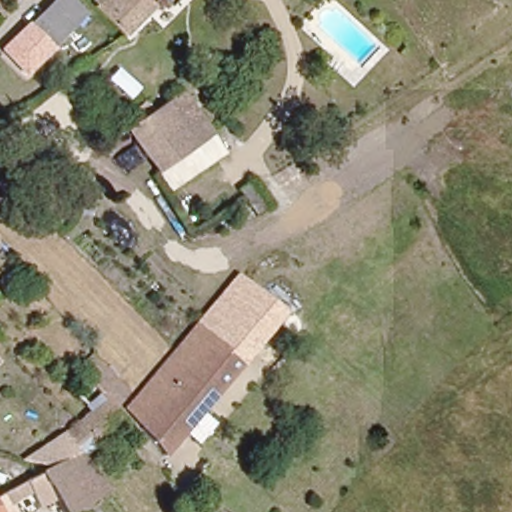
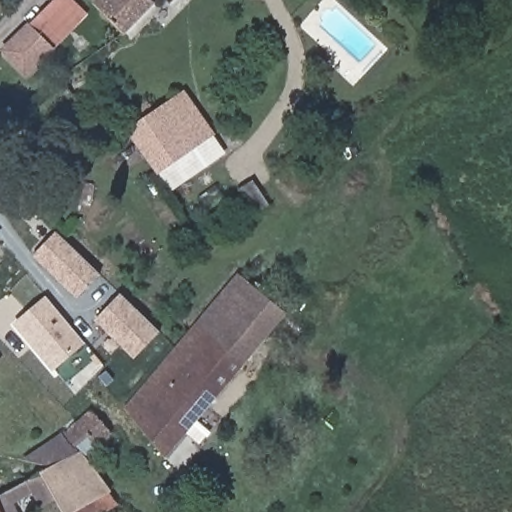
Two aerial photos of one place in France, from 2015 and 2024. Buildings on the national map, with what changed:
unchanged [(26,75),(3,53),(58,0),(75,0),(87,12),(54,44),(56,46),(26,75)]
unchanged [(96,1),(96,0),(155,0),(123,33),(96,5),(96,1)]
unchanged [(168,0),(175,0),(172,4),(168,0)]
unchanged [(184,95),(224,150),(212,159),(171,188),(131,131),(184,95)]
unchanged [(271,208),(258,216),(245,197),(240,190),(252,181),(271,208)]
new [(77,299),(32,256),(56,232),(100,274),(77,299)]
unchanged [(126,411),(238,271),(259,288),(239,311),(270,335),(169,460),(126,411)]
new [(159,332),(134,358),(94,320),(120,294),(159,332)]
new [(53,372),(13,324),(46,296),(85,343),(53,372)]
unchanged [(90,411),(78,395),(96,377),(84,362),(95,353),(127,392),(115,407),(135,431),(116,448),(109,439),(100,447),(90,436),(77,421),(90,411)]
unchanged [(70,458),(55,438),(77,421),(90,436),(76,448),(109,492),(73,512),(61,512),(57,506),(39,474),(41,473),(53,466),(70,458)]
unchanged [(39,475),(57,506),(46,512),(33,512),(31,509),(24,512),(16,512),(6,492),(39,475)]
unchanged [(6,492),(16,512),(0,512),(0,495),(6,492)]

